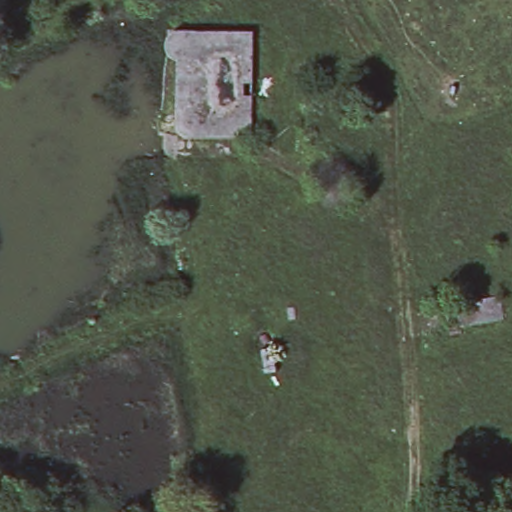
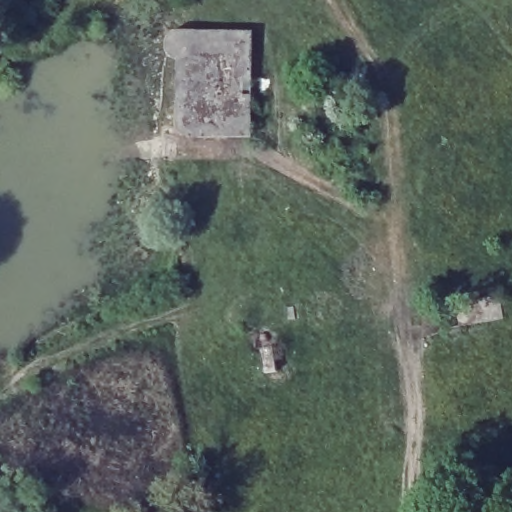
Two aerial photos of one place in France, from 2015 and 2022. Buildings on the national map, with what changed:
unchanged [(255,139),(185,136),(172,134),(175,60),(167,52),(165,45),(166,40),(169,34),(175,29),(254,31),(255,139)]
unchanged [(503,293),(508,320),(465,328),(459,301),(503,293)]

